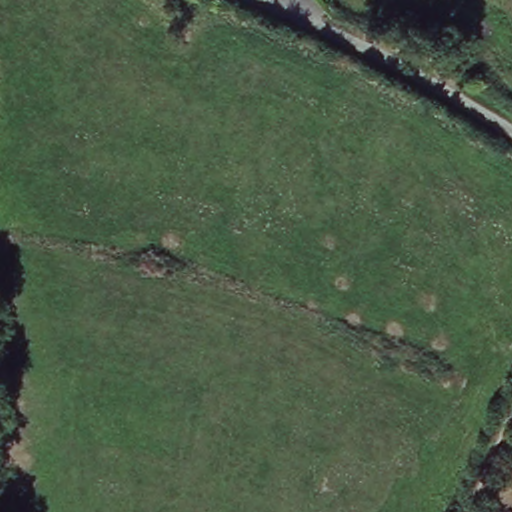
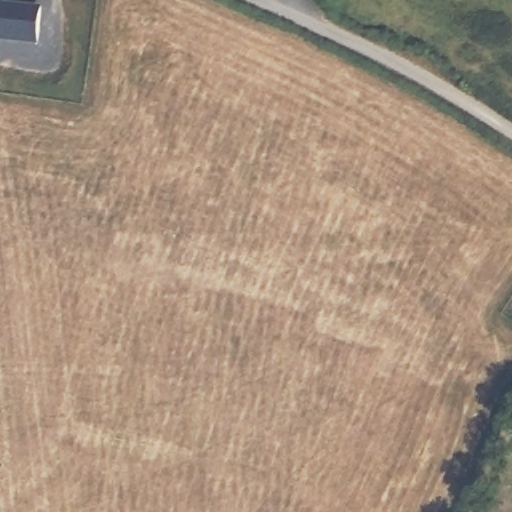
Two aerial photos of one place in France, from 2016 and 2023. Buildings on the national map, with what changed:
new [(38,41),(0,37),(0,5),(40,9),(38,41)]

